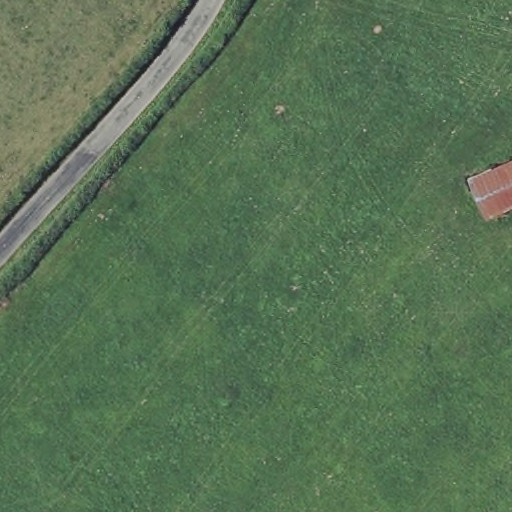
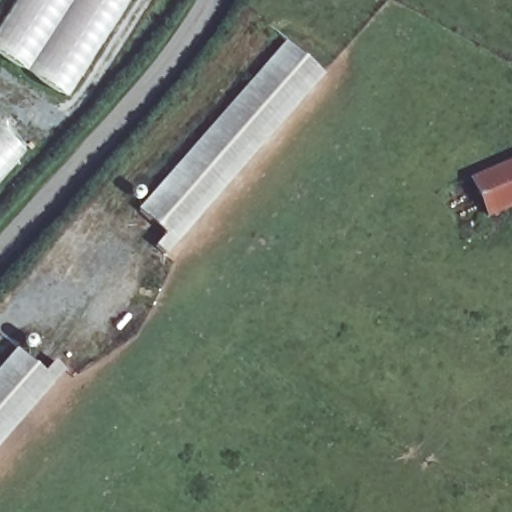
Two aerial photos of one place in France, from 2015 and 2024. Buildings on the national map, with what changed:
new [(0,55),(0,25),(16,0),(130,0),(67,98),(0,55)]
new [(326,74),(165,255),(155,247),(166,233),(138,210),(287,41),(326,74)]
new [(27,152),(0,182),(0,129),(27,152)]
unchanged [(487,216),(465,174),(512,154),(512,205),(487,216)]
new [(55,362),(65,371),(0,444),(0,366),(16,348),(44,373),(55,362)]

